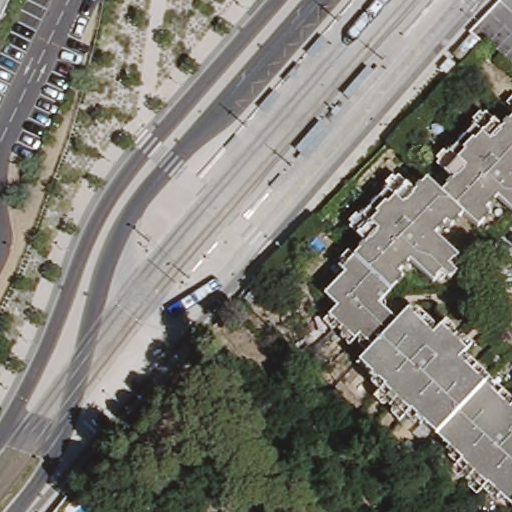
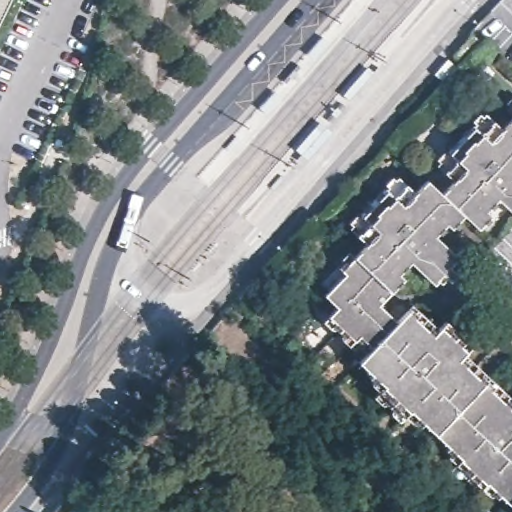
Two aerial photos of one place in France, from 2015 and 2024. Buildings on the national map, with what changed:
unchanged [(7,0),(0,15),(0,0),(7,0)]
unchanged [(493,213),(497,219),(485,232),(469,218),(446,196),(460,182),(451,174),(443,165),(456,152),(480,128),(493,115),(500,124),(509,131),(512,128),(512,211),(503,202),(493,213)]
unchanged [(463,276),(457,283),(449,277),(441,286),(416,264),(406,274),(410,279),(397,292),(360,257),(372,245),(372,244),(364,237),(355,229),(368,215),(392,191),(405,178),(413,186),(421,194),(432,183),(446,196),(469,218),(458,230),(453,226),(441,237),(449,243),(466,260),(456,270),(463,276)]
unchanged [(366,336),(361,341),(336,317),(343,308),(331,295),(350,275),(347,271),(360,257),(397,292),(385,305),(385,306),(403,324),(379,348),(366,336)]
unchanged [(416,412),(410,418),(384,393),(390,386),(366,363),(379,348),(403,324),(414,313),(438,336),(439,336),(447,328),(459,340),(463,337),(476,349),(464,361),(490,386),(441,435),(416,412)]
unchanged [(486,492),(461,467),(467,460),(441,435),(490,386),(512,407),(512,504),(493,486),(486,492)]

